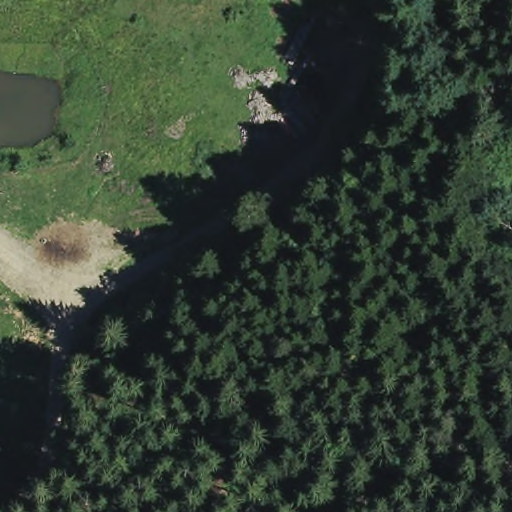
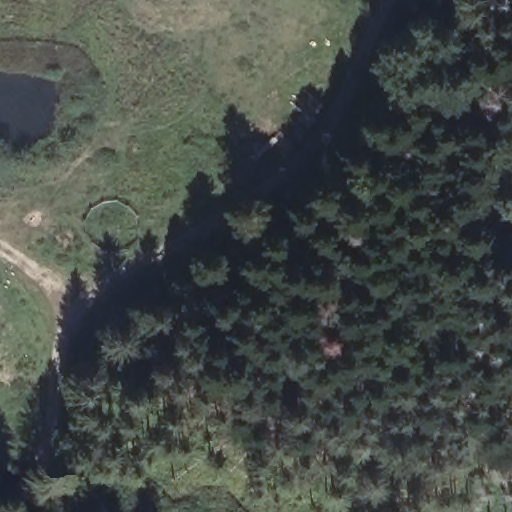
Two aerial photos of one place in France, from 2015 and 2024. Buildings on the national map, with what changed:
unchanged [(512,463),(512,512),(500,512),(498,463),(512,463)]

